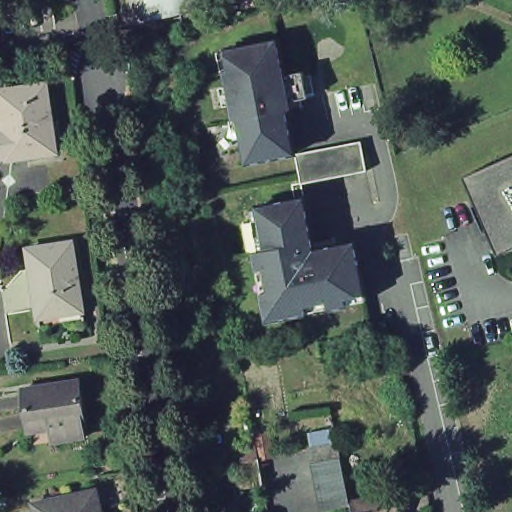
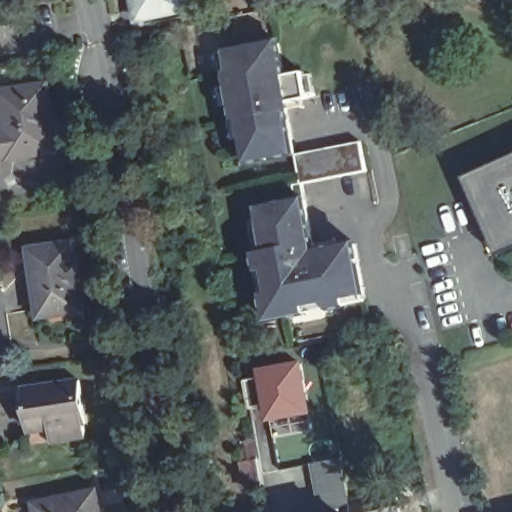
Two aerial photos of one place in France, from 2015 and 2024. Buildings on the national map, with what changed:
unchanged [(131,0),(195,0),(198,11),(144,22),(136,24),(133,11),(131,0)]
unchanged [(283,42),(290,76),(309,73),(314,99),(289,104),(290,109),(292,110),(300,154),(252,163),(244,120),(241,121),(231,71),(235,71),(231,51),(283,42)]
unchanged [(3,123),(0,101),(0,87),(47,80),(57,149),(8,156),(7,153),(0,154),(0,124),(3,123)]
unchanged [(340,248),(351,306),(271,320),(259,253),(270,252),(262,208),(299,201),(296,185),(306,183),(300,156),(366,142),(371,172),(306,185),(309,199),(319,251),(340,248)]
unchanged [(468,177),(512,157),(512,250),(502,255),(468,177)]
unchanged [(39,328),(28,251),(73,244),(84,321),(82,322),(41,328),(39,328)]
unchanged [(360,244),(370,301),(351,306),(340,248),(360,244)]
new [(257,377),(256,367),(303,359),(313,414),(264,423),(261,407),(247,409),(241,379),(257,377)]
unchanged [(50,429),(29,432),(22,390),(79,381),(85,423),(83,423),(85,437),(68,439),(52,442),(50,429)]
unchanged [(268,432),(273,458),(260,460),(256,435),(268,432)]
unchanged [(312,459),(313,459),(310,443),(337,438),(340,453),(349,498),(350,501),(321,507),(312,459)]
unchanged [(245,488),(241,462),(258,459),(263,484),(245,488)]
unchanged [(398,492),(401,512),(352,512),(350,501),(398,492)]
unchanged [(38,509),(101,496),(104,512),(39,512),(38,509)]

